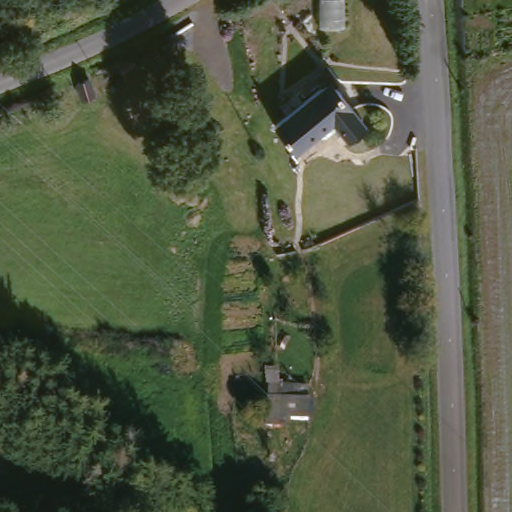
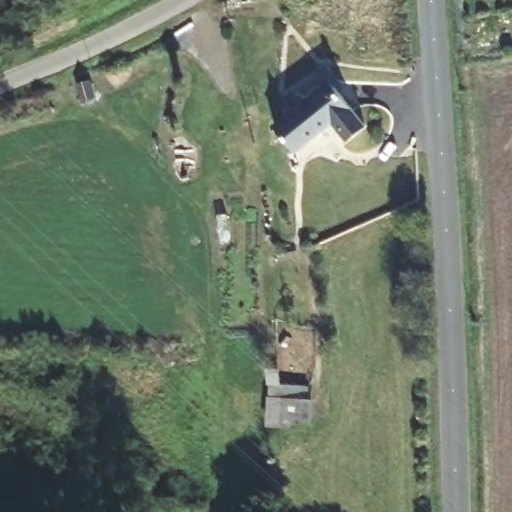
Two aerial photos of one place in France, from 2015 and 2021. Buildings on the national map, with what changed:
unchanged [(350,146),(338,133),(333,127),(321,135),(297,153),(278,129),(331,91),(321,78),(340,66),(352,83),(339,91),(369,131),(350,146)]
unchanged [(307,399),(311,399),(310,420),(283,420),(282,385),(307,385),(307,399)]

